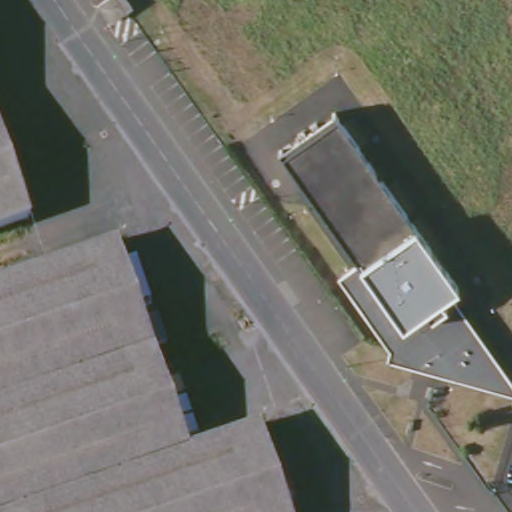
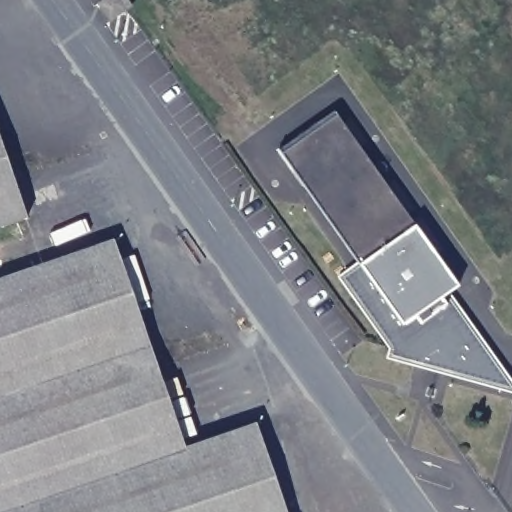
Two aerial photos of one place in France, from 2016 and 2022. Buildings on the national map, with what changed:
unchanged [(133,15),(116,28),(105,12),(121,0),(123,0),(133,15)]
unchanged [(461,294),(471,307),(458,315),(499,370),(494,388),(462,380),(453,367),(443,375),(397,362),(398,355),(361,303),(366,275),(283,158),(337,118),(461,294)]
unchanged [(0,224),(0,151),(22,216),(0,224)]
unchanged [(256,424),(286,512),(0,512),(0,280),(111,241),(182,448),(256,424)]

